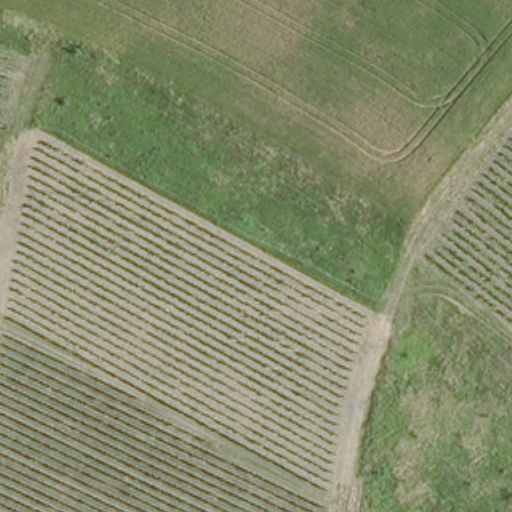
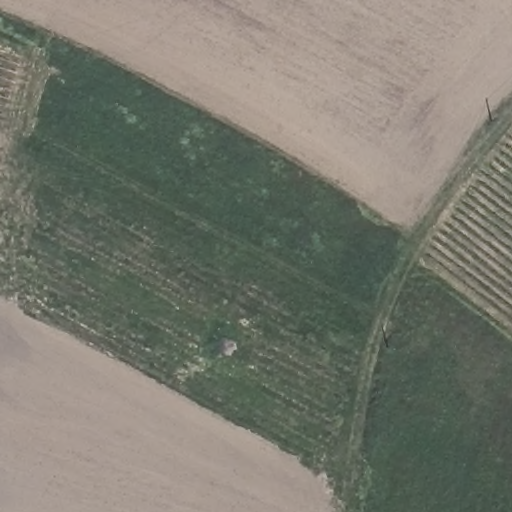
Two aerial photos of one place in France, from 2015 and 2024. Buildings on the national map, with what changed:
[]

